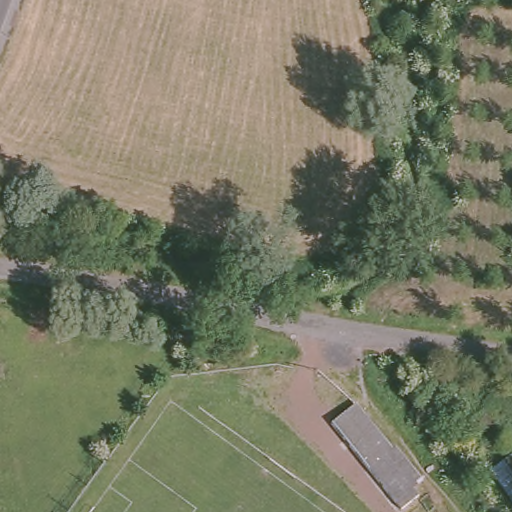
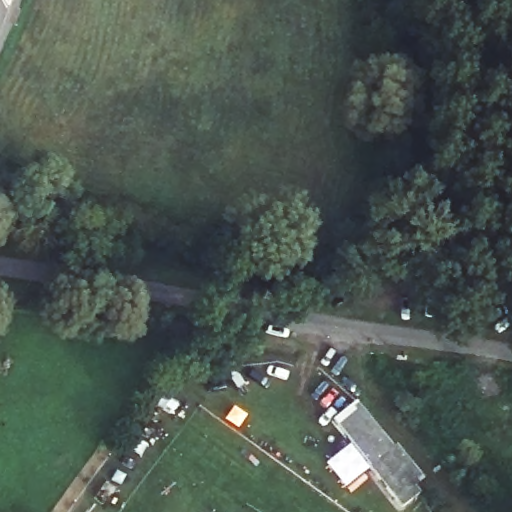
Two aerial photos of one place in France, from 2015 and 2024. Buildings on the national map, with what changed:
unchanged [(358,398),(426,491),(404,511),(332,418),(358,398)]

